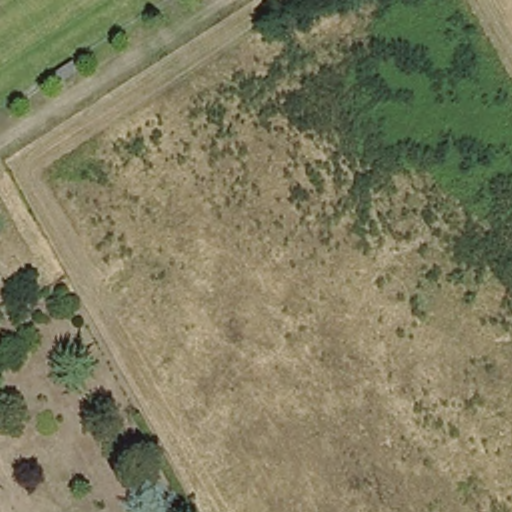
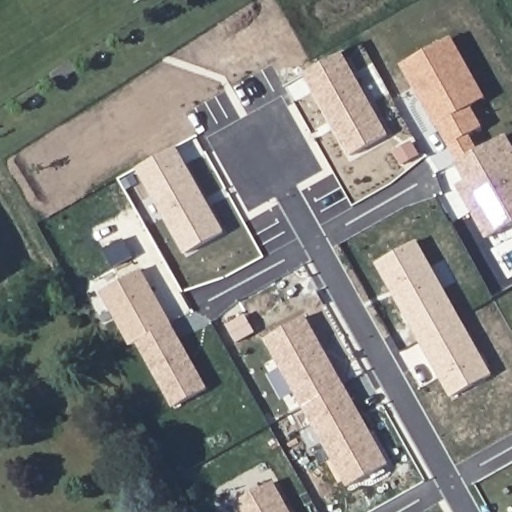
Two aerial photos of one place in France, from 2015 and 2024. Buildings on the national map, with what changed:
new [(488,240),(458,186),(466,181),(457,163),(458,162),(440,126),(438,127),(403,65),(454,36),(489,98),(474,106),(486,127),(473,134),(480,148),(509,134),(512,141),(512,227),(488,240)]
new [(352,157),(305,74),(345,53),(391,135),(352,157)]
new [(187,256),(138,169),(178,146),(227,232),(187,256)]
new [(453,398),(377,263),(419,240),(495,375),(453,398)]
new [(210,388),(176,408),(138,343),(131,346),(102,293),(145,268),(210,388)]
new [(350,488),(265,339),(309,316),(391,464),(350,488)]
new [(238,512),(234,505),(276,481),(293,512),(238,512)]

